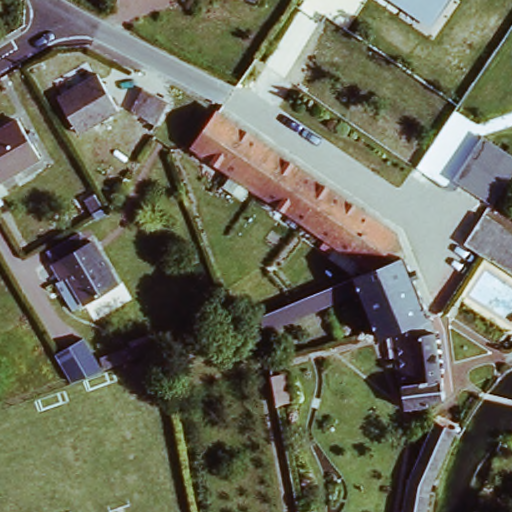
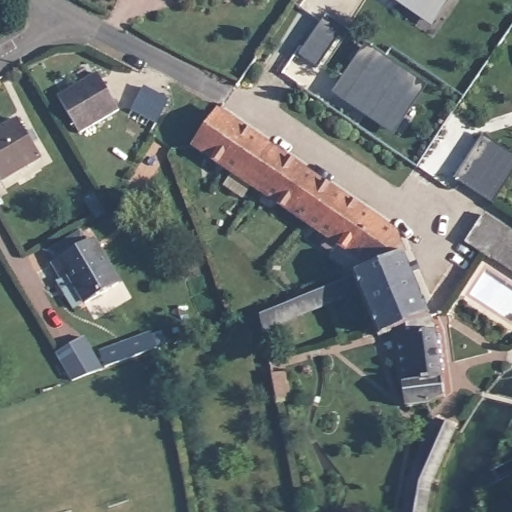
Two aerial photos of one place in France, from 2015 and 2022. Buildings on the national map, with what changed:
unchanged [(432,27),(391,0),(450,0),(432,27)]
new [(328,22),(346,35),(319,69),(301,55),(326,24),(328,22)]
new [(358,112),(338,98),(370,55),(389,69),(402,79),(424,96),(409,117),(393,138),(358,112)]
unchanged [(94,71),(115,106),(78,129),(57,93),(94,71)]
unchanged [(147,90),(168,101),(154,130),(133,118),(147,90)]
unchanged [(214,108),(396,230),(374,265),(188,147),(214,108)]
unchanged [(43,157),(0,183),(0,134),(21,121),(43,157)]
unchanged [(476,160),(491,140),(511,155),(512,156),(512,179),(495,201),(463,177),(476,160)]
unchanged [(88,200),(97,195),(105,209),(95,214),(88,200)]
unchanged [(452,230),(472,202),(512,233),(512,275),(452,230)]
unchanged [(53,249),(88,228),(113,270),(85,287),(74,294),(56,265),(61,262),(53,249)]
unchanged [(261,314),(402,255),(425,313),(428,330),(438,331),(447,396),(404,406),(396,359),(383,360),(379,339),(359,292),(263,332),(261,314)]
unchanged [(85,333),(99,355),(104,363),(105,365),(75,376),(74,374),(69,365),(57,345),(56,344),(85,333)]
unchanged [(108,364),(107,362),(104,353),(158,334),(161,343),(161,344),(108,364)]
unchanged [(432,427),(454,434),(434,478),(427,512),(400,512),(404,489),(432,427)]

